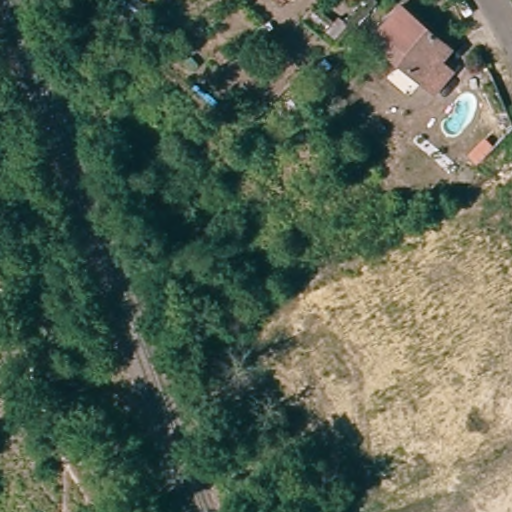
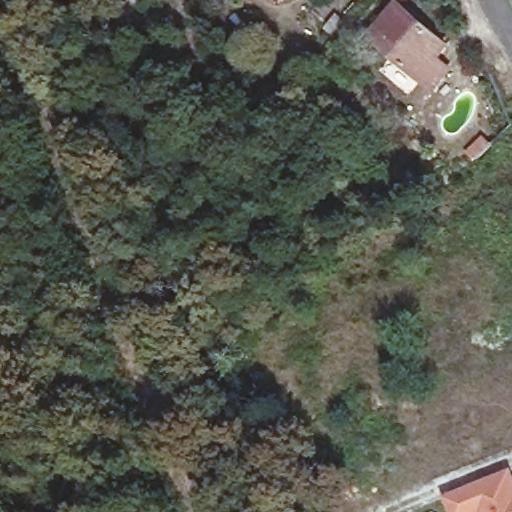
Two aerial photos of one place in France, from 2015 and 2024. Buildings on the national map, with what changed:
unchanged [(429,65),(401,40),(404,35),(384,18),(400,0),(419,0),(455,32),(446,44),(460,55),(441,75),(429,65)]
unchanged [(471,157),(484,143),(492,151),(479,164),(479,165),(471,157)]
new [(444,496),(512,468),(512,512),(451,512),(444,496)]

